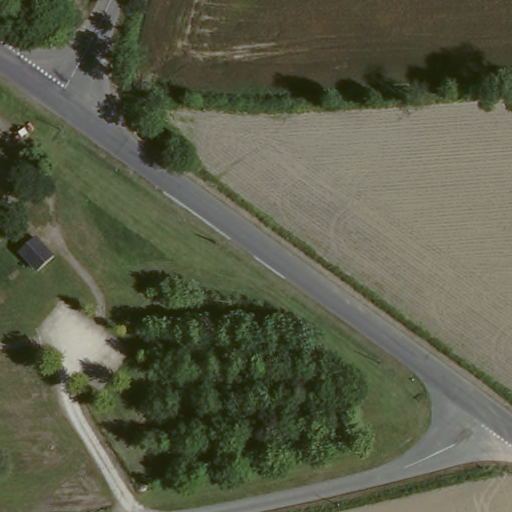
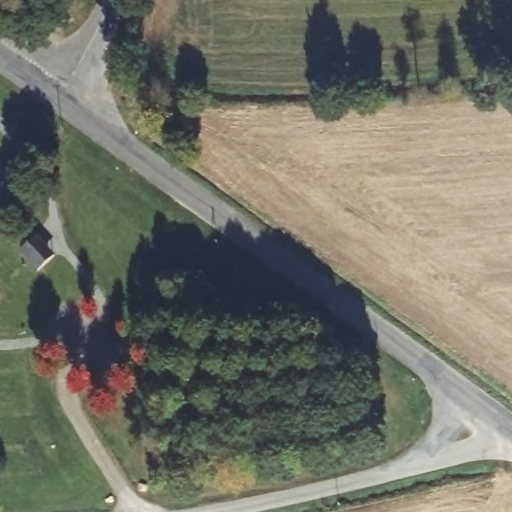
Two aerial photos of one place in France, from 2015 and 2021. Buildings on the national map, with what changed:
unchanged [(52,258),(35,272),(18,253),(36,239),(52,258)]

